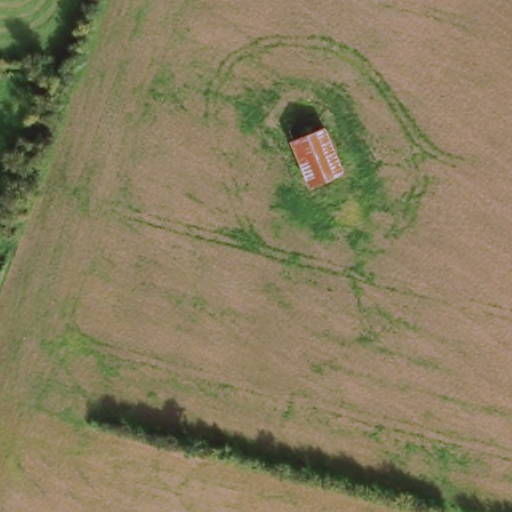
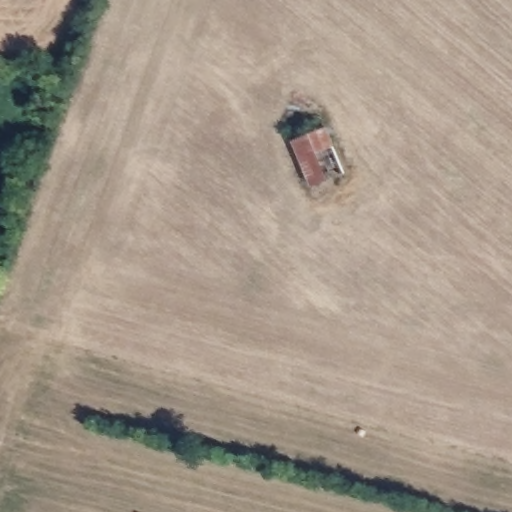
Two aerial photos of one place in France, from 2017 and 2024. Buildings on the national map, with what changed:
unchanged [(346,175),(309,189),(294,142),(332,131),(346,175)]

